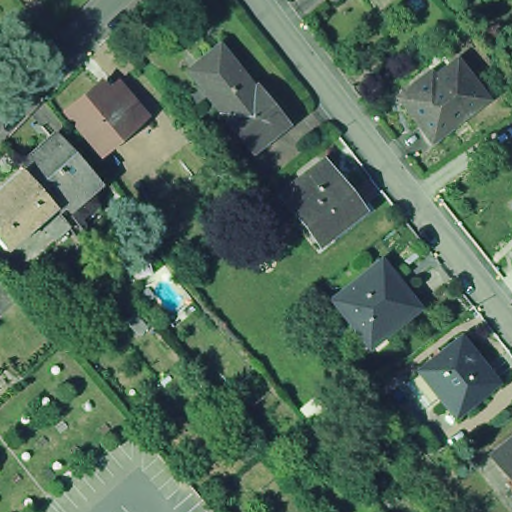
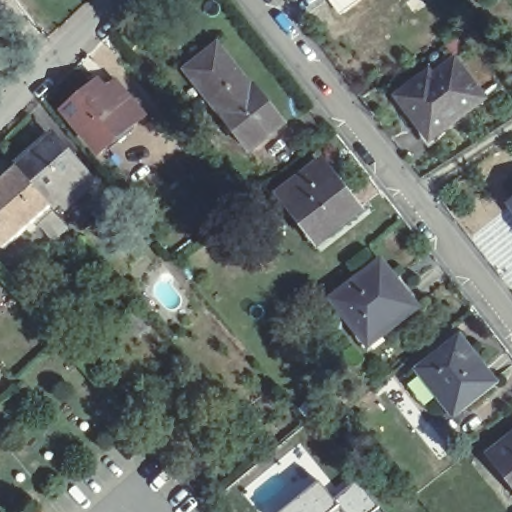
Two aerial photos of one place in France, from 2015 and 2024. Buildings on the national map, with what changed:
unchanged [(472,3),(470,0),(476,0),(472,3)]
unchanged [(222,116),(231,107),(195,65),(216,46),(252,88),(255,85),(289,123),(255,153),(222,116)]
unchanged [(458,59),(487,97),(433,137),(405,100),(458,59)]
unchanged [(100,86),(106,94),(117,85),(140,113),(97,150),(66,113),(100,86)]
unchanged [(0,245),(0,185),(18,169),(16,167),(17,167),(45,142),(50,148),(56,143),(88,179),(53,210),(51,207),(3,250),(0,245)]
unchanged [(323,247),(286,200),(327,168),(363,215),(323,247)]
unchanged [(512,200),(512,202),(511,201),(512,200)]
unchanged [(373,350),(337,304),(385,267),(422,312),(373,350)]
unchanged [(32,282),(22,290),(11,277),(20,269),(32,282)]
unchanged [(500,382),(458,415),(423,370),(465,338),(500,382)]
new [(6,365),(0,371),(0,358),(6,365)]
unchanged [(512,443),(512,475),(496,455),(512,443)]
new [(283,512),(320,482),(335,500),(357,481),(379,507),(373,512),(344,512),(340,506),(332,512),(283,512)]

